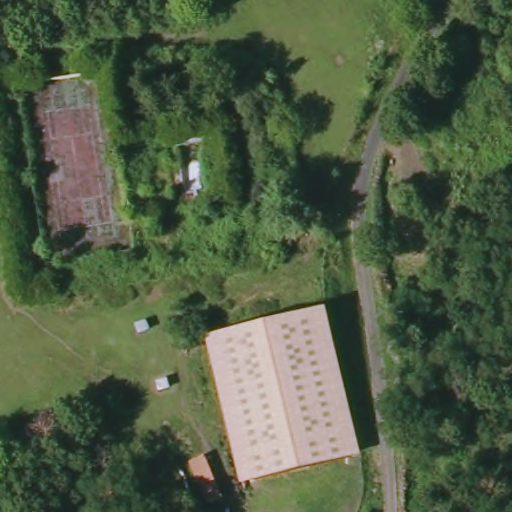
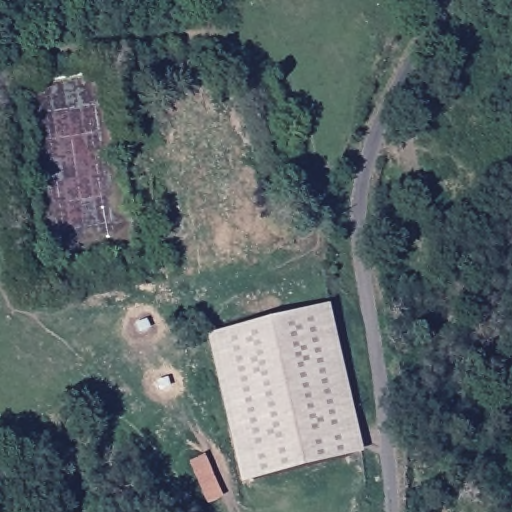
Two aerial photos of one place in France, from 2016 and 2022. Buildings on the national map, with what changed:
unchanged [(361,459),(242,484),(205,337),(325,309),(361,459)]
unchanged [(192,478),(206,471),(217,493),(204,500),(192,478)]
unchanged [(90,489),(100,478),(136,504),(130,512),(125,512),(90,489)]

